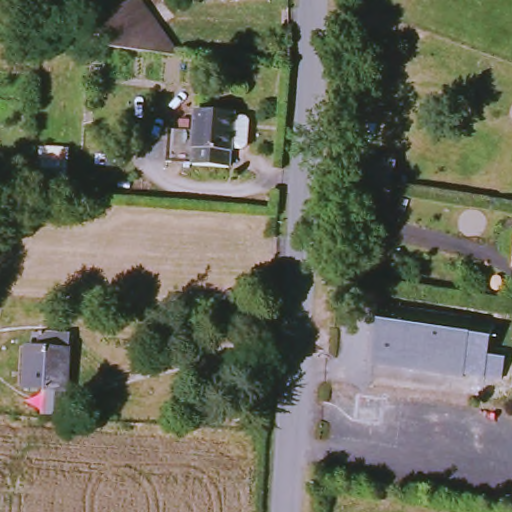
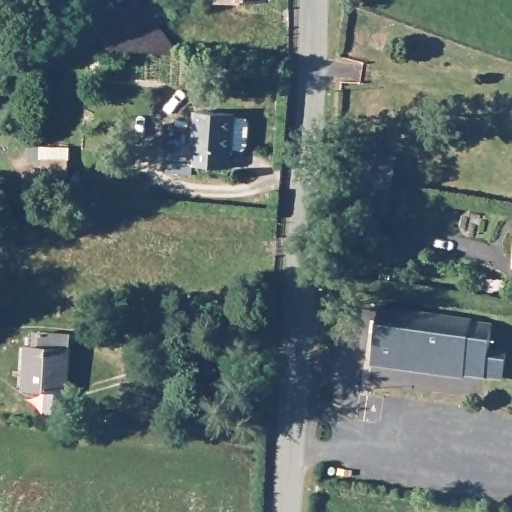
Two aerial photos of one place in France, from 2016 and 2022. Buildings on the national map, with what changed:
unchanged [(115,47),(99,26),(135,0),(147,0),(182,55),(115,47)]
unchanged [(240,112),(240,115),(252,116),(255,121),(253,146),(249,149),(237,148),(237,152),(236,152),(235,167),(199,165),(199,163),(172,161),(174,128),(200,129),(202,110),(240,112)]
unchanged [(42,177),(42,159),(42,146),(69,147),(69,159),(68,178),(42,177)]
unchanged [(357,210),(360,189),(365,158),(402,163),(397,194),(394,215),(357,210)]
unchanged [(380,305),(472,318),(472,320),(492,323),(485,376),(464,373),(464,376),(372,363),(380,305)]
unchanged [(50,415),(51,389),(30,387),(32,347),(38,347),(39,332),(75,334),(72,390),(70,416),(50,415)]
unchanged [(242,387),(247,417),(232,420),(226,389),(242,387)]

